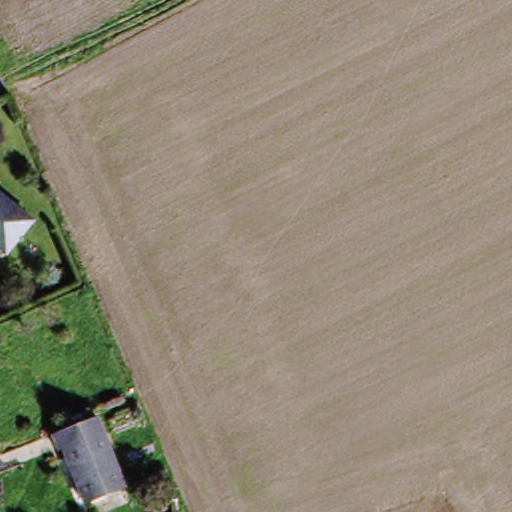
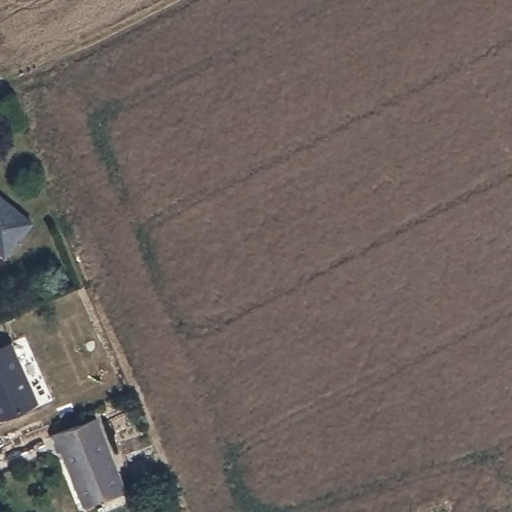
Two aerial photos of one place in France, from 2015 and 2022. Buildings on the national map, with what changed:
unchanged [(7,257),(0,251),(0,195),(33,224),(7,257)]
new [(0,419),(0,345),(11,340),(40,401),(0,419)]
unchanged [(96,415),(123,488),(82,502),(62,447),(56,449),(51,431),(96,415)]

